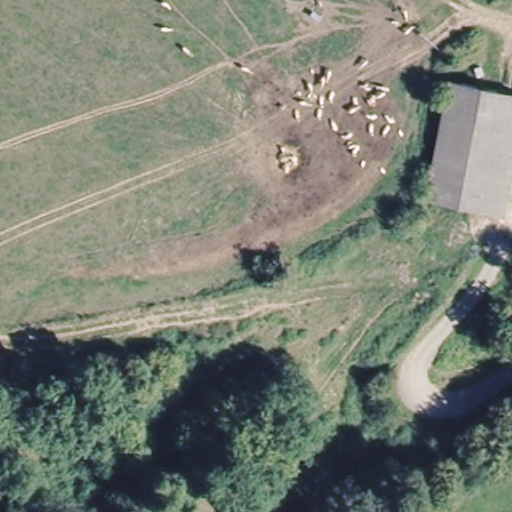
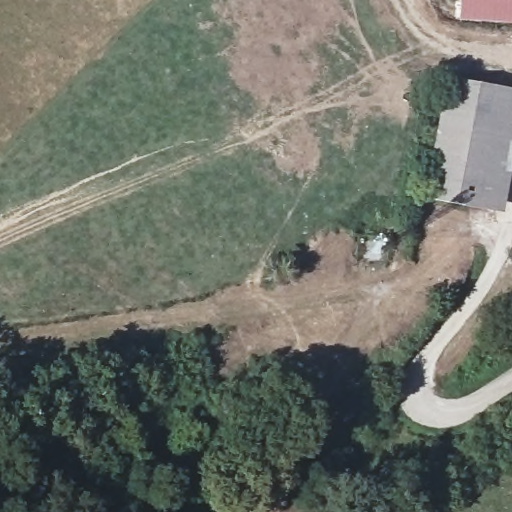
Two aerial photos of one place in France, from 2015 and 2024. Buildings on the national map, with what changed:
new [(460,20),(461,0),(512,0),(512,24),(460,20)]
unchanged [(445,90),(472,94),(512,100),(512,126),(506,174),(496,173),(493,193),(431,187),(445,90)]

